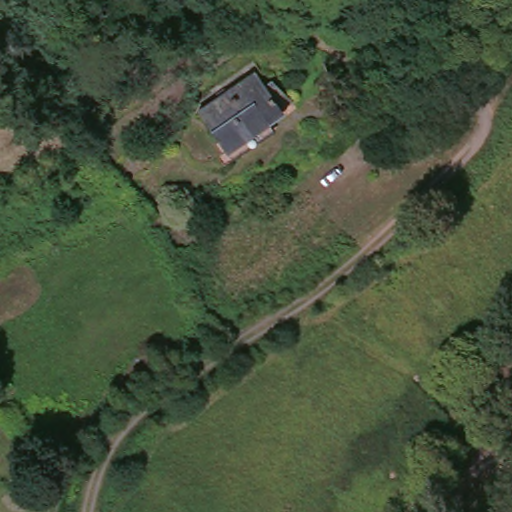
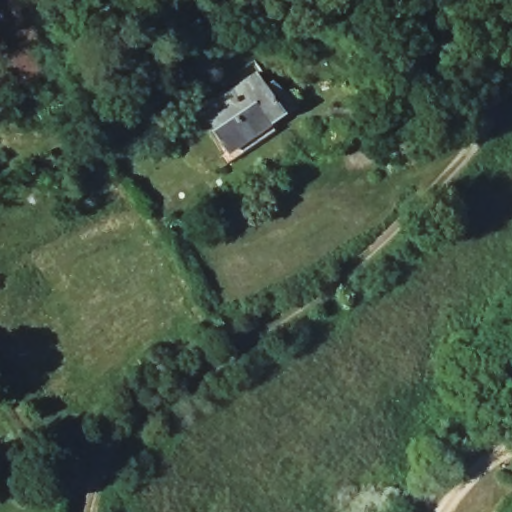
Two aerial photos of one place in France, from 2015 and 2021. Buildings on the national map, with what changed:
unchanged [(262,127),(267,133),(229,165),(207,141),(210,137),(195,119),(248,74),(260,85),(265,82),(282,98),(271,107),(277,114),(262,127)]
unchanged [(321,137),(306,120),(327,103),(342,119),(321,137)]

